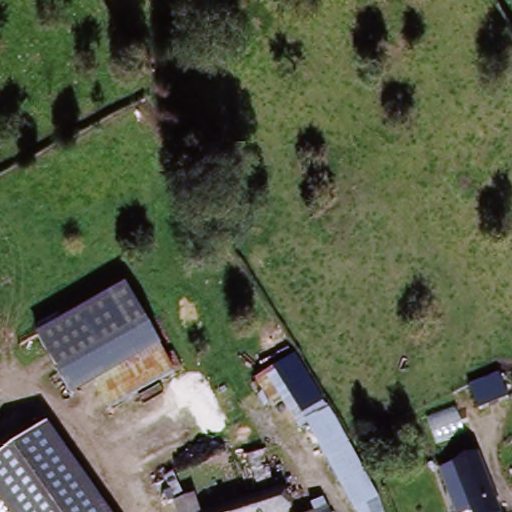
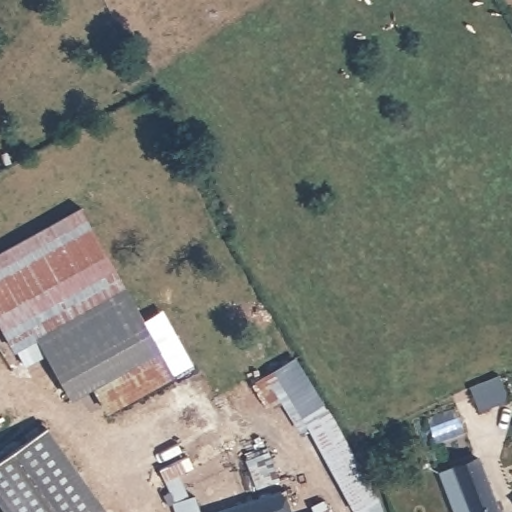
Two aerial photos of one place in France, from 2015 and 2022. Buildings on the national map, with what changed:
new [(15,351),(0,325),(0,250),(81,205),(127,286),(123,288),(37,340),(15,351)]
unchanged [(162,351),(99,385),(72,399),(37,340),(123,288),(162,351)]
new [(112,410),(99,385),(162,351),(178,376),(112,410)]
unchanged [(328,413),(376,498),(380,512),(359,512),(357,507),(305,428),(299,432),(266,375),(294,360),(328,413)]
unchanged [(505,362),(512,377),(512,392),(485,404),(472,376),(505,362)]
unchanged [(0,506),(0,463),(42,433),(105,512),(5,512),(0,506)]
unchanged [(471,458),(498,512),(466,512),(466,511),(465,512),(457,512),(437,474),(471,458)]
unchanged [(272,496),(282,492),(292,512),(226,512),(272,496)]
unchanged [(326,512),(313,512),(310,506),(321,500),(326,512)]

